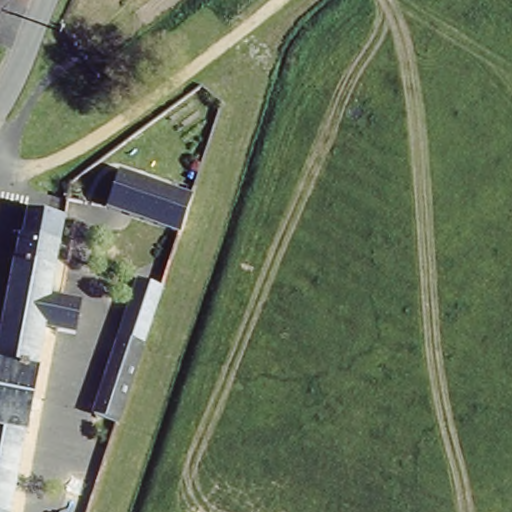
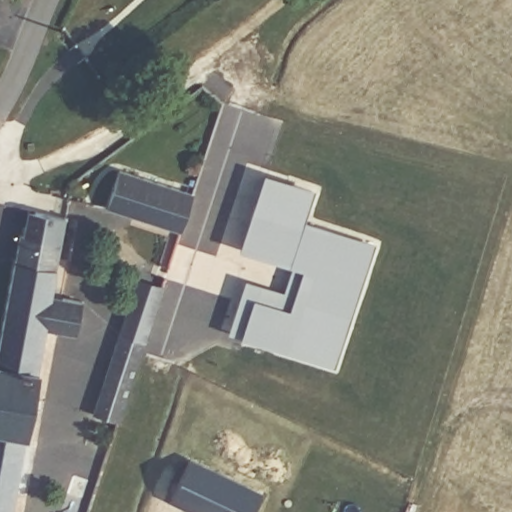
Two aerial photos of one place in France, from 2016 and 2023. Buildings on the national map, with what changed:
unchanged [(194,192),(180,231),(107,206),(119,167),(194,192)]
new [(254,301),(290,313),(305,269),(298,266),(246,249),(269,177),(315,192),(305,224),(376,245),(337,365),(243,335),(254,301)]
unchanged [(17,234),(21,235),(25,210),(64,216),(49,295),(80,301),(74,334),(54,331),(55,328),(44,326),(31,399),(29,410),(24,437),(9,512),(0,512),(0,323),(17,234)]
unchanged [(142,342),(127,337),(152,256),(168,261),(142,342)]
new [(253,282),(289,294),(298,266),(305,269),(290,313),(254,301),(243,335),(236,333),(253,282)]
unchanged [(116,422),(93,415),(119,335),(127,337),(142,342),(116,422)]

